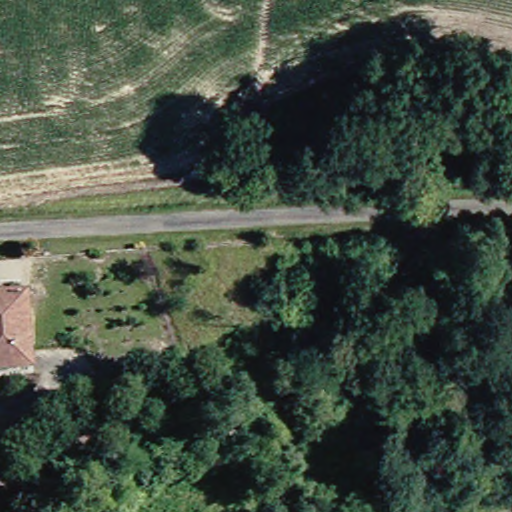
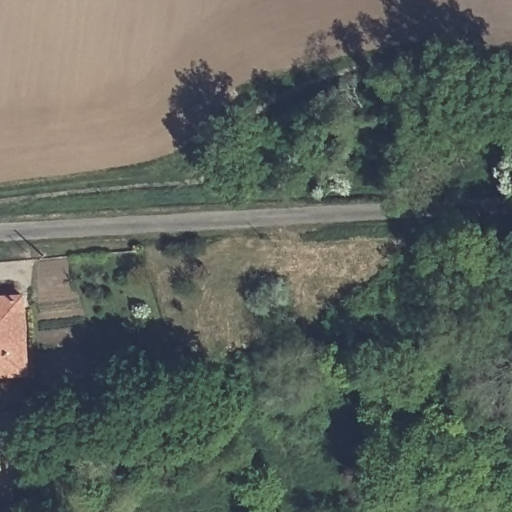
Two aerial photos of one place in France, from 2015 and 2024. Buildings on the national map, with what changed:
unchanged [(10,371),(0,372),(0,300),(16,299),(17,316),(20,371),(10,371)]

